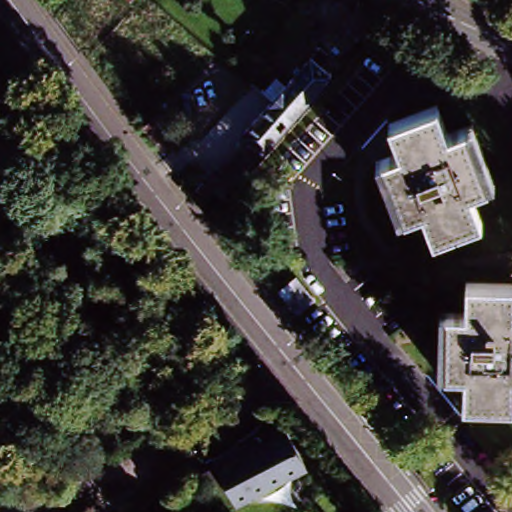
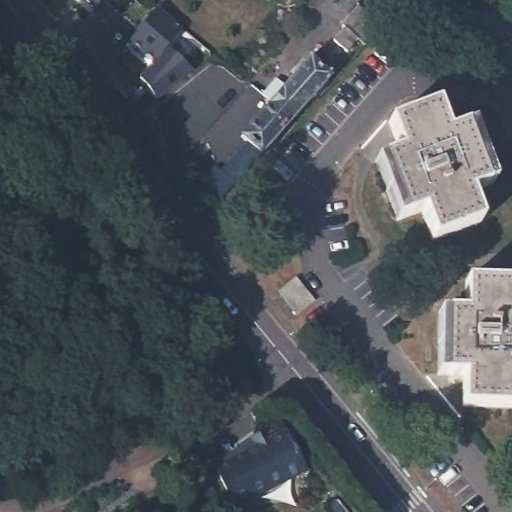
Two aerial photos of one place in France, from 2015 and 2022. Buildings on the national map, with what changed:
new [(93,9),(82,0),(101,0),(93,9)]
unchanged [(354,37),(342,52),(328,39),(340,25),(338,23),(352,5),(379,29),(362,45),(354,37)]
new [(155,9),(181,30),(165,48),(152,62),(128,42),(155,9)]
new [(152,62),(165,48),(192,71),(156,101),(138,79),(152,62)]
unchanged [(307,57),(320,68),(314,75),(320,82),(281,126),(260,109),(307,57)]
unchanged [(437,106),(447,134),(467,127),(489,185),(469,194),(480,220),(434,238),(422,210),(407,216),(383,158),(400,152),(395,136),(390,122),(437,106)]
unchanged [(192,186),(260,109),(281,126),(210,204),(192,186)]
unchanged [(295,277),(312,297),(295,311),(279,290),(295,277)]
unchanged [(445,379),(447,321),(466,321),(467,292),(512,292),(512,410),(463,410),(463,393),(463,380),(445,379)]
unchanged [(304,470),(254,502),(255,504),(251,507),(247,500),(232,510),(212,477),(238,460),(234,452),(253,440),(276,426),(304,470)]

